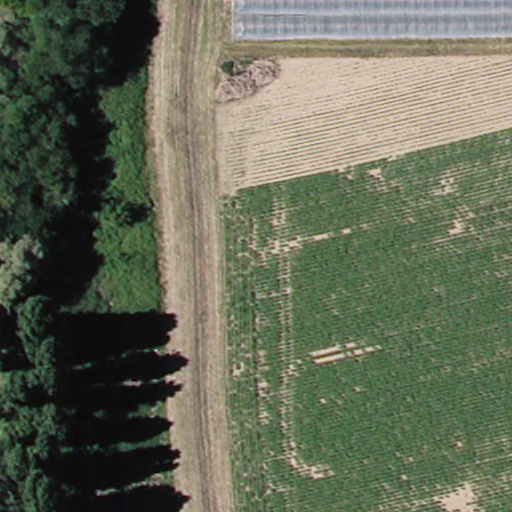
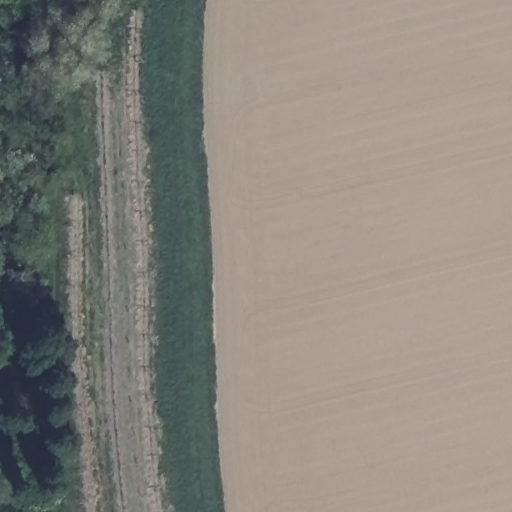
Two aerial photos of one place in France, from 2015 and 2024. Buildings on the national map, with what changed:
demolished [(235,34),(235,0),(512,0),(512,31),(235,34)]

